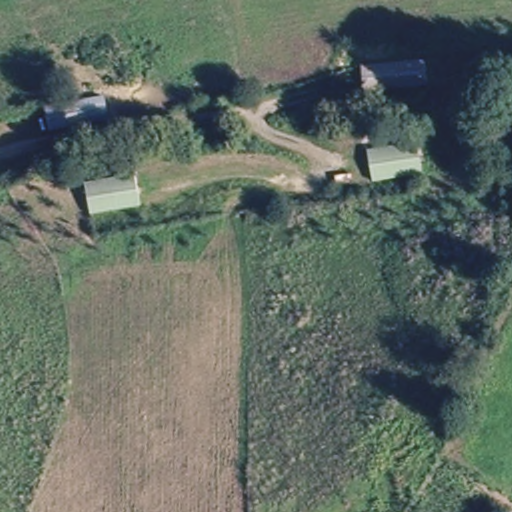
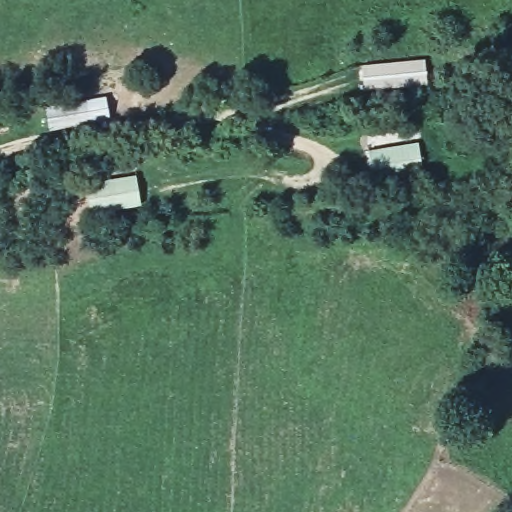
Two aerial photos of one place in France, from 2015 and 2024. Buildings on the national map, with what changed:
unchanged [(426,82),(363,90),(359,67),(423,59),(426,82)]
unchanged [(107,119),(47,130),(42,105),(103,95),(107,119)]
unchanged [(417,144),(422,175),(373,180),(368,150),(417,144)]
unchanged [(138,205),(87,213),(83,184),(135,175),(138,205)]

